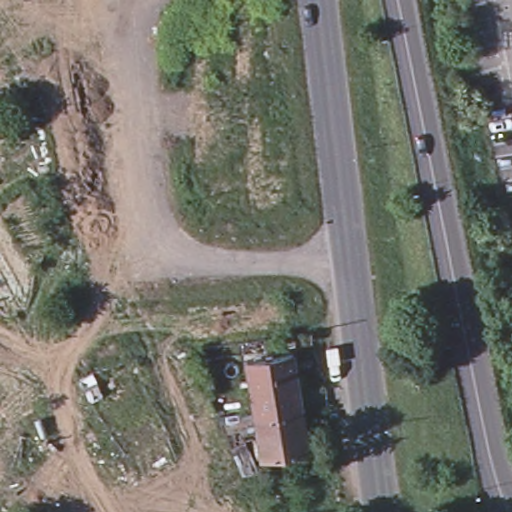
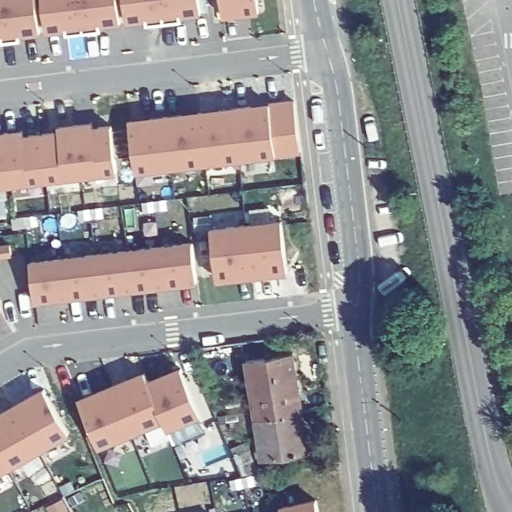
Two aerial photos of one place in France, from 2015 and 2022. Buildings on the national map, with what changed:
new [(0,5),(0,0),(37,0),(42,35),(22,37),(22,42),(5,45),(0,45),(0,5)]
new [(68,37),(67,32),(48,35),(44,0),(81,0),(85,35),(68,37)]
new [(102,28),(103,33),(85,35),(81,0),(119,0),(122,25),(102,28)]
new [(148,22),(128,25),(125,0),(163,0),(201,0),(203,15),(183,18),(184,23),(166,25),(148,27),(148,22)]
new [(240,16),(223,19),(221,0),(258,0),(258,7),(258,8),(258,14),(240,16)]
new [(268,106),(294,104),(300,154),(240,161),(235,110),(250,109),(268,106)]
new [(240,161),(206,165),(172,170),(165,119),(181,117),(200,115),(219,112),(235,110),(240,161)]
new [(165,119),(172,170),(136,174),(132,130),(131,124),(150,122),(149,121),(165,119)]
new [(93,125),(93,131),(112,129),(118,174),(82,179),(76,127),(93,125)]
new [(60,135),(60,130),(76,127),(82,179),(47,183),(42,137),(60,135)]
new [(0,137),(7,136),(23,134),(24,140),(42,137),(47,183),(13,187),(0,188),(0,137)]
unchanged [(268,276),(252,278),(247,228),(282,224),(287,267),(286,267),(287,273),(268,276)]
unchanged [(217,275),(211,232),(247,228),(252,278),(237,280),(236,280),(217,282),(217,275)]
new [(192,246),(197,284),(165,288),(160,250),(192,246)]
new [(160,250),(165,288),(132,292),(128,254),(160,250)]
new [(128,254),(132,292),(100,295),(96,257),(128,254)]
new [(96,257),(100,295),(68,300),(63,261),(96,257)]
new [(63,261),(68,300),(35,303),(31,265),(63,261)]
new [(0,314),(0,312),(1,313),(0,314)]
unchanged [(255,436),(260,435),(258,427),(247,429),(245,416),(257,415),(248,358),(293,352),(302,409),(307,448),(262,454),(261,444),(257,445),(255,436)]
unchanged [(173,446),(167,431),(163,422),(164,421),(148,385),(150,385),(163,378),(181,371),(183,377),(184,377),(200,417),(206,433),(173,446)]
new [(145,375),(147,381),(148,381),(150,385),(148,385),(164,421),(163,422),(132,435),(112,389),(128,382),(145,375)]
unchanged [(80,402),(98,395),(112,389),(132,435),(99,448),(82,408),(83,408),(80,402)]
unchanged [(45,392),(48,397),(70,435),(39,453),(14,409),(28,401),(45,392)]
new [(0,455),(0,422),(0,417),(13,410),(14,409),(39,453),(8,470),(0,475),(0,455)]
unchanged [(256,467),(242,472),(235,454),(248,447),(256,467)]
new [(315,502),(318,512),(280,512),(280,510),(315,502)]

